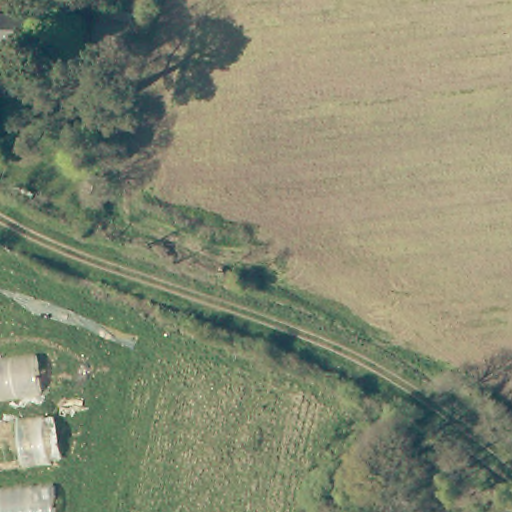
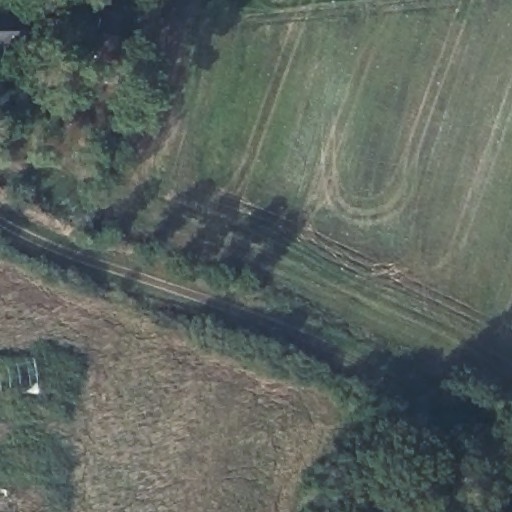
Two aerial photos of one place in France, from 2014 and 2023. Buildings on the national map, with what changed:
unchanged [(0,49),(0,21),(25,20),(25,48),(0,49)]
unchanged [(133,29),(124,61),(91,50),(100,20),(133,29)]
demolished [(68,512),(0,512),(0,358),(49,351),(68,512)]
new [(54,512),(0,512),(0,490),(50,485),(54,512)]

